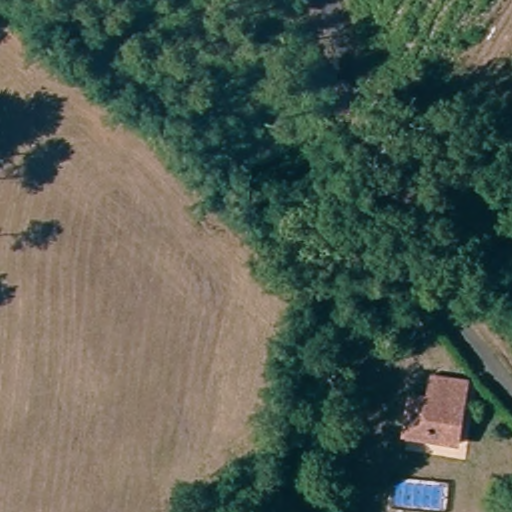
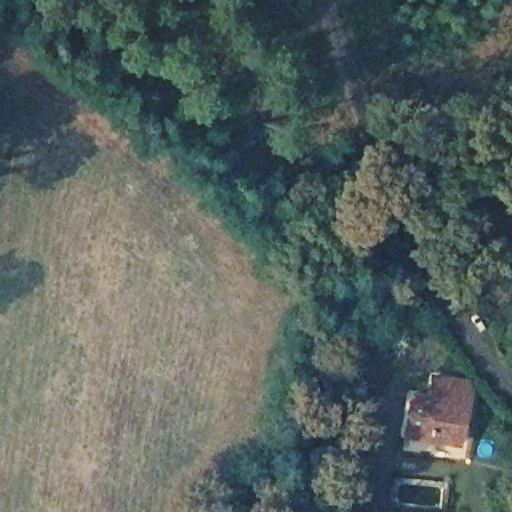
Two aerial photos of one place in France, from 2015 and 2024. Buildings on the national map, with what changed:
unchanged [(422,388),(426,371),(468,379),(467,389),(465,398),(456,447),(399,435),(410,385),(422,388)]

